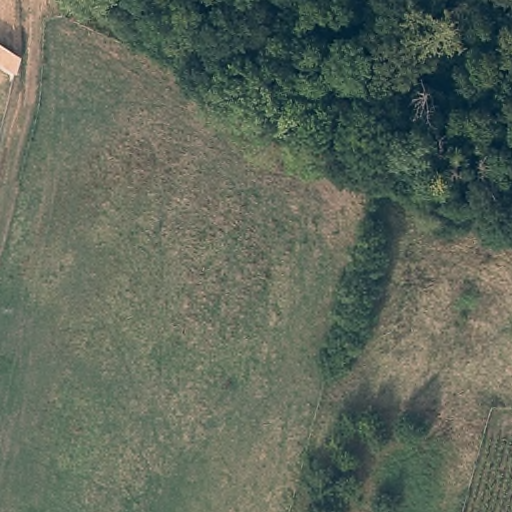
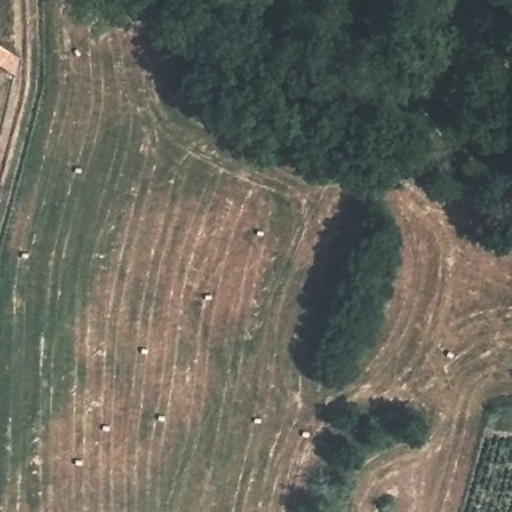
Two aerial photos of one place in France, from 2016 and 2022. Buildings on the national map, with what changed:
unchanged [(0,61),(0,45),(7,50),(0,61)]

